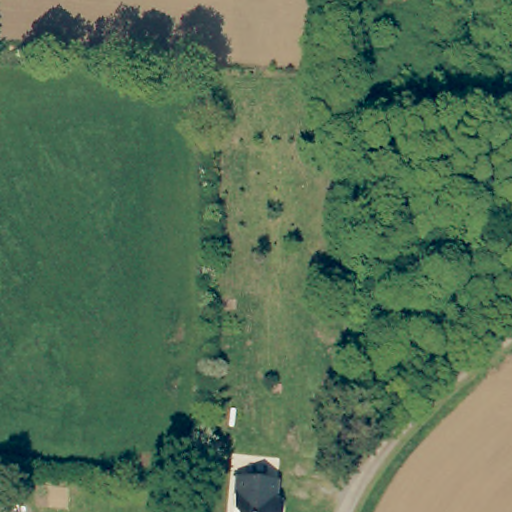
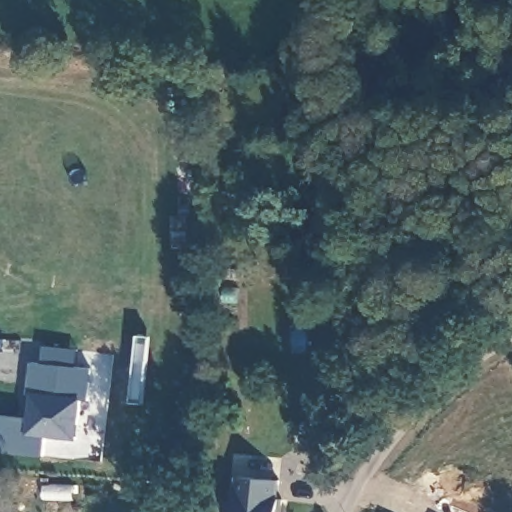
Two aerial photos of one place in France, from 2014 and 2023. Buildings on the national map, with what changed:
new [(92,368),(90,403),(82,402),(77,441),(50,438),(46,458),(0,453),(0,414),(29,417),(30,393),(27,393),(32,361),(44,363),(45,344),(77,348),(76,366),(92,368)]
unchanged [(266,471),(265,490),(270,490),(270,510),(267,510),(267,512),(226,512),(226,510),(223,505),(225,470),(266,471)]

